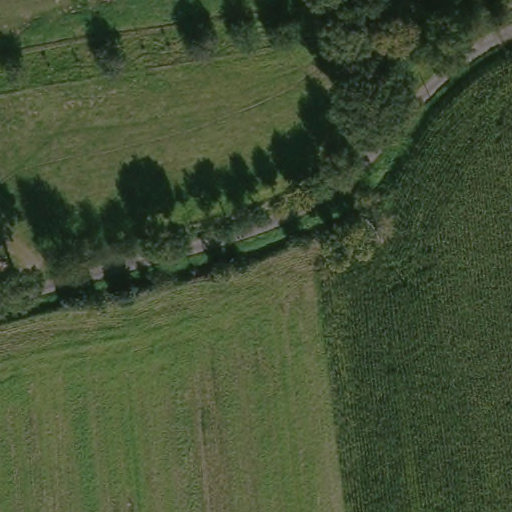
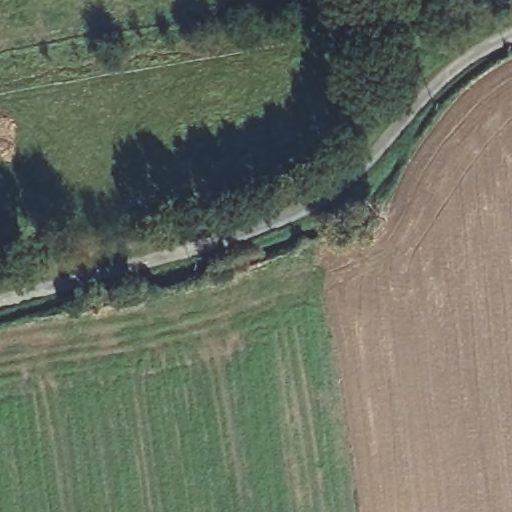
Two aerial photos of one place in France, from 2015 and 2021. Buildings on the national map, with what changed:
[]

